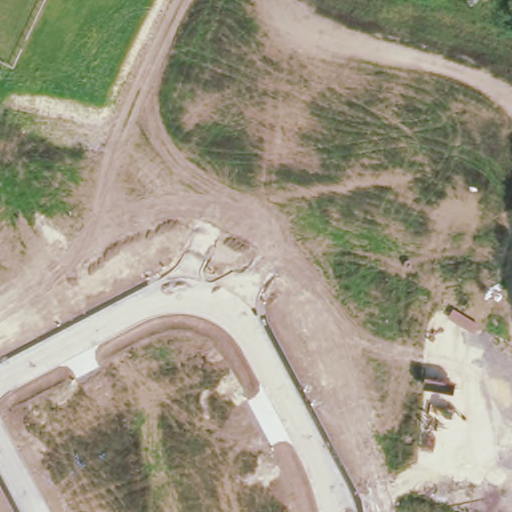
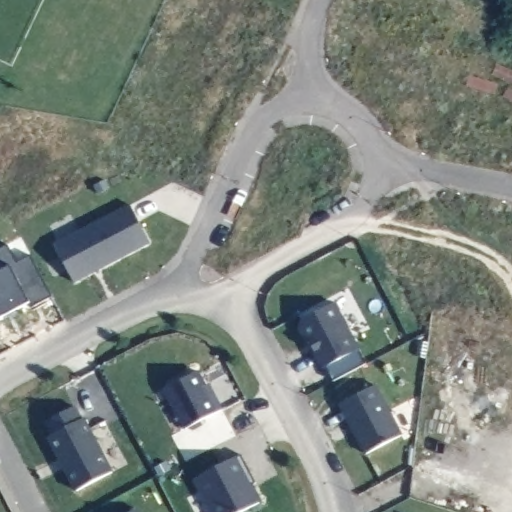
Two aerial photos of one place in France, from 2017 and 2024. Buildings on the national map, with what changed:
new [(55,244),(130,204),(150,242),(75,282),(55,244)]
new [(17,264),(30,256),(50,294),(44,297),(45,300),(38,304),(36,301),(0,320),(0,250),(7,246),(17,264)]
new [(367,363),(333,380),(325,366),(323,367),(310,341),(307,342),(300,327),(302,319),(334,302),(367,363)]
new [(199,370),(212,394),(214,393),(222,409),(187,428),(165,388),(199,370)]
new [(375,385),(402,434),(367,453),(340,403),(375,385)]
new [(58,453),(62,450),(55,437),(84,423),(92,437),(94,435),(122,488),(86,507),(58,453)]
new [(257,482),(252,485),(260,502),(242,512),(215,512),(197,477),(242,454),(257,482)]
new [(138,512),(131,512),(137,509),(138,512)]

